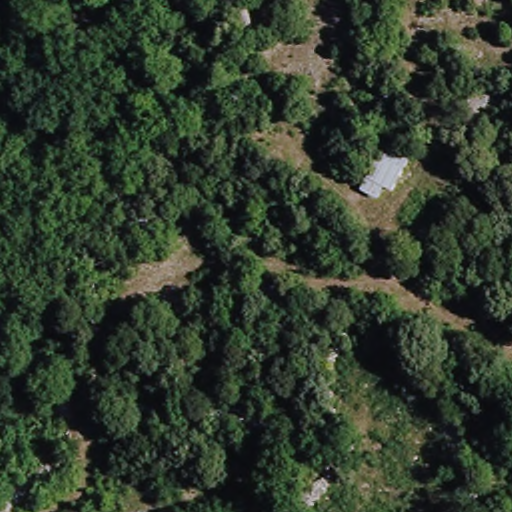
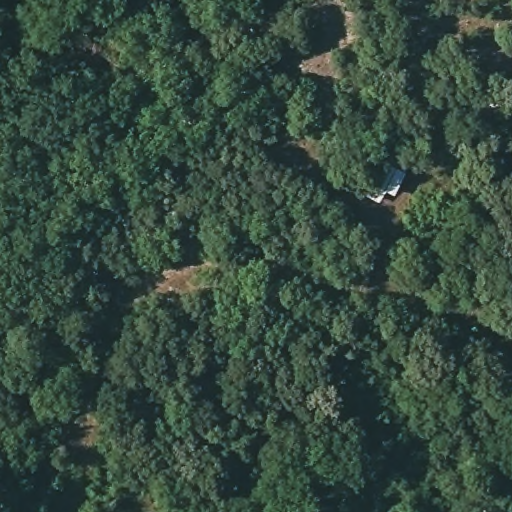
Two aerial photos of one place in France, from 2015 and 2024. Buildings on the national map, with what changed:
unchanged [(407,156),(390,196),(374,188),(365,202),(353,194),(382,139),(407,156)]

